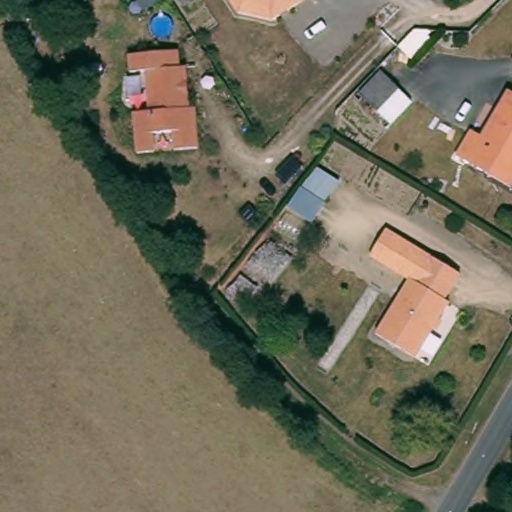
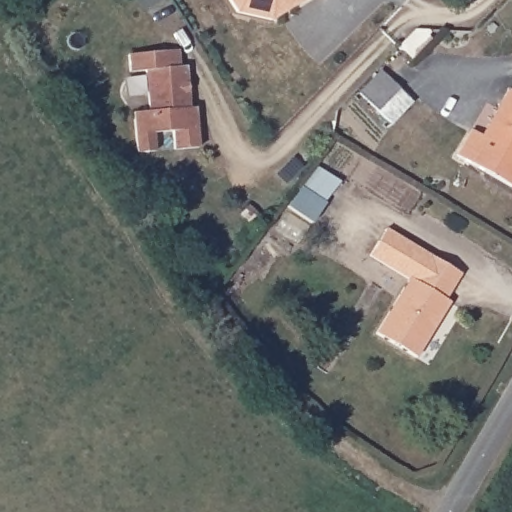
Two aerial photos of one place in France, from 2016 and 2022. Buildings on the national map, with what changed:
unchanged [(135,0),(158,0),(141,11),(135,0)]
unchanged [(236,11),(228,0),(305,0),(271,20),(236,11)]
unchanged [(178,66),(185,66),(189,107),(194,106),(198,146),(172,149),(171,131),(153,132),(154,151),(134,152),(131,111),(146,110),(143,70),(127,70),(126,54),(177,50),(178,66)]
unchanged [(357,92),(380,70),(411,104),(389,129),(357,92)]
unchanged [(512,180),(506,190),(450,158),(464,135),(475,141),(502,92),(512,97),(512,180)]
unchanged [(369,251),(384,225),(463,272),(448,296),(454,301),(418,360),(377,334),(411,277),(369,251)]

